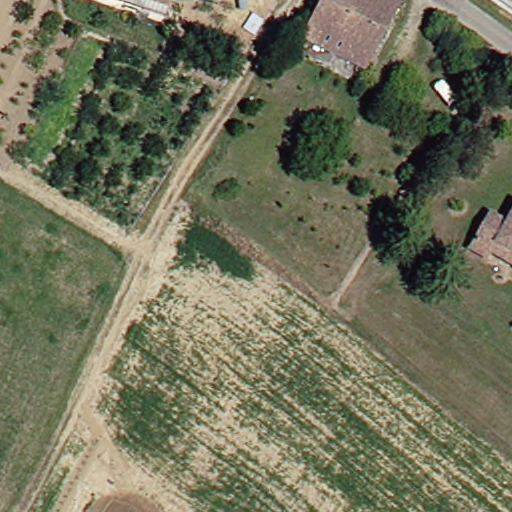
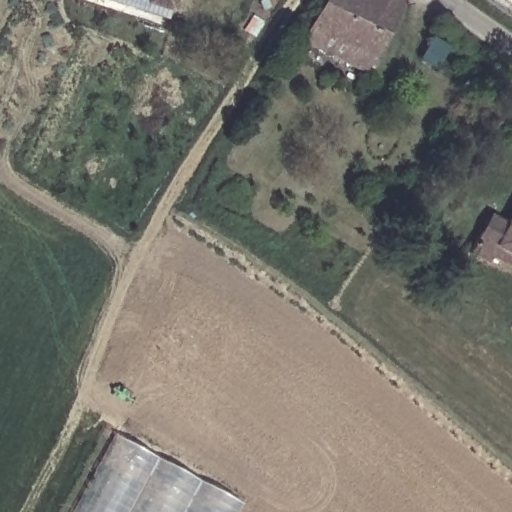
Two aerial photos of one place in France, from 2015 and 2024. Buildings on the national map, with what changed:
unchanged [(145,0),(173,0),(170,9),(145,0)]
unchanged [(315,28),(328,0),(398,0),(371,55),(367,65),(310,38),(315,28)]
unchanged [(489,257),(471,248),(491,210),(509,220),(512,214),(512,264),(491,252),(489,257)]
new [(236,512),(73,512),(114,437),(240,503),(236,512)]

